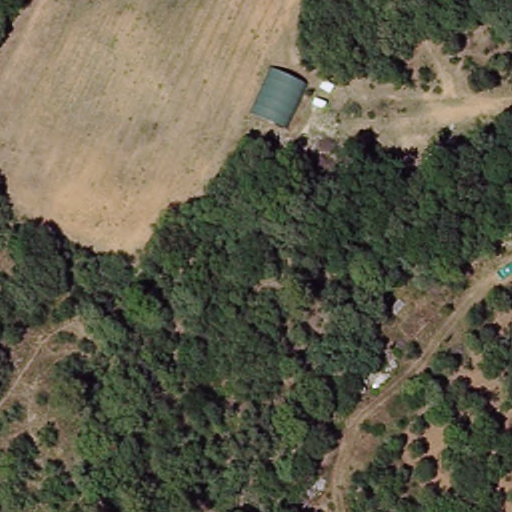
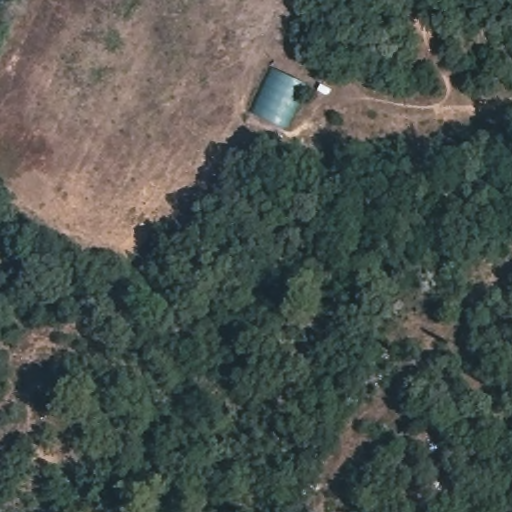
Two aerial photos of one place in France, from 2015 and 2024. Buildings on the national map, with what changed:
unchanged [(273,66),(309,81),(289,130),(254,114),(273,66)]

